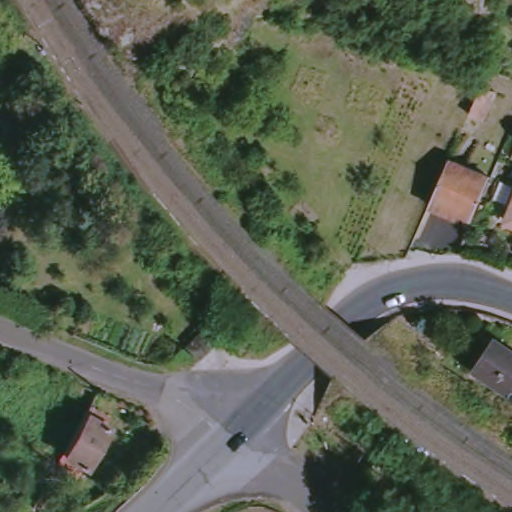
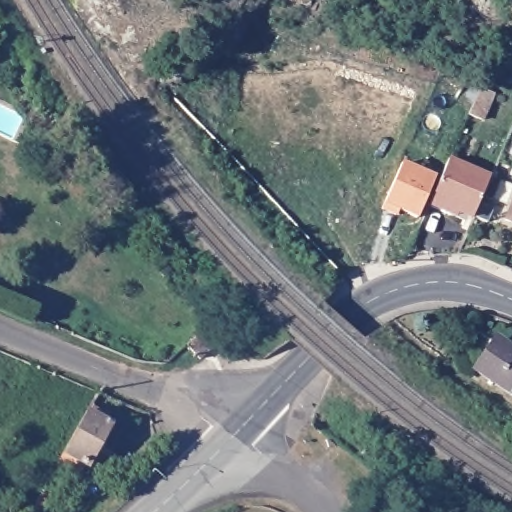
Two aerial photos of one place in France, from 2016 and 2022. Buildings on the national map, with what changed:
unchanged [(417,38),(420,29),(441,36),(438,45),(417,38)]
unchanged [(481,88),(495,94),(483,121),(470,115),(481,88)]
unchanged [(433,205),(454,160),(495,178),(475,224),(433,205)]
new [(403,162),(436,176),(418,218),(397,210),(395,214),(383,209),(403,162)]
unchanged [(201,330),(215,344),(200,358),(186,344),(201,330)]
unchanged [(500,339),(512,347),(512,392),(480,370),(496,344),(500,339)]
unchanged [(78,453),(104,406),(123,416),(120,422),(124,425),(101,465),(100,464),(93,476),(71,464),(78,453)]
unchanged [(34,505),(43,487),(50,491),(40,508),(34,505)]

